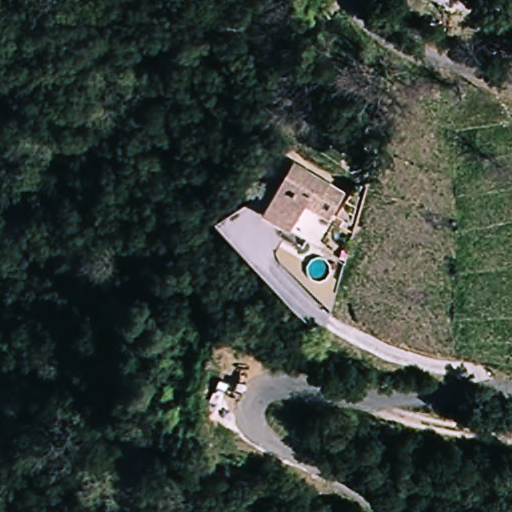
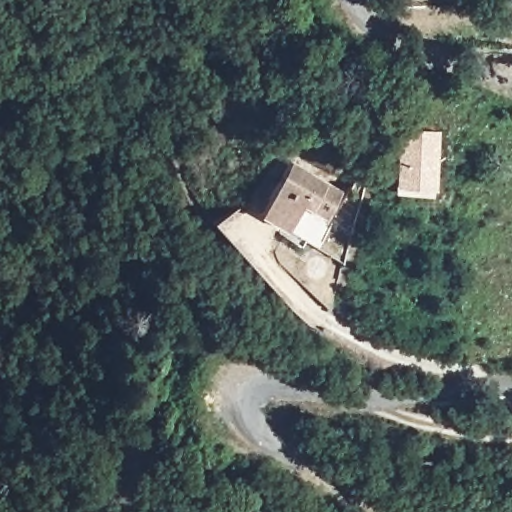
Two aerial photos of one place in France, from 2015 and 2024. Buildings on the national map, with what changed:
new [(401,129),(439,133),(433,197),(395,193),(401,129)]
unchanged [(288,162),(341,189),(326,218),(298,204),(284,228),(260,215),(288,162)]

